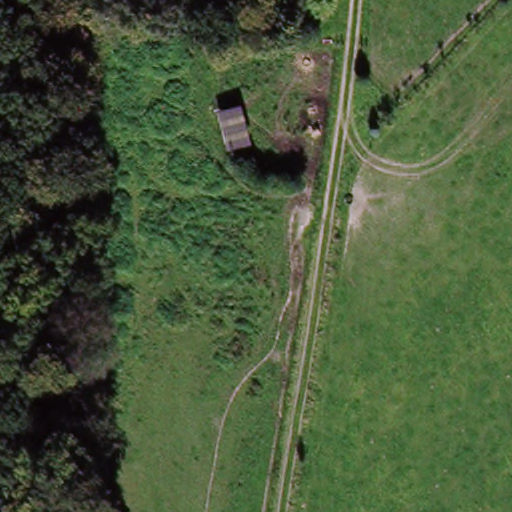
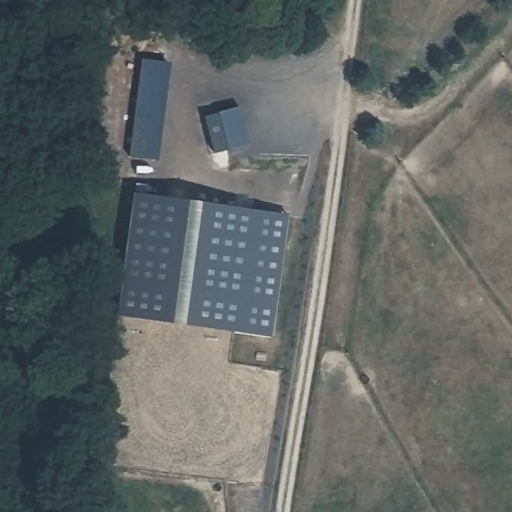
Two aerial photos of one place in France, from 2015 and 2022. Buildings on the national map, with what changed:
new [(288,214),(270,337),(114,316),(129,192),(288,214)]

